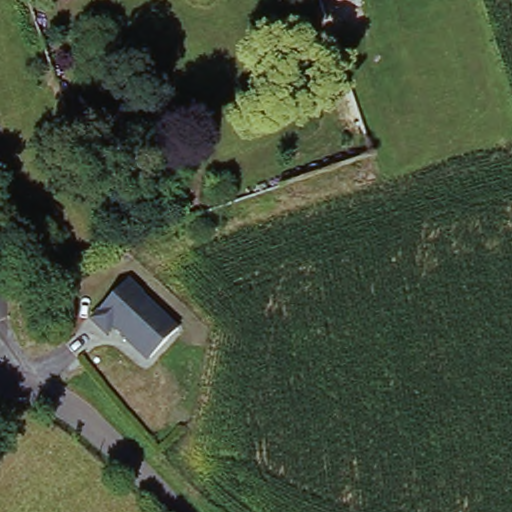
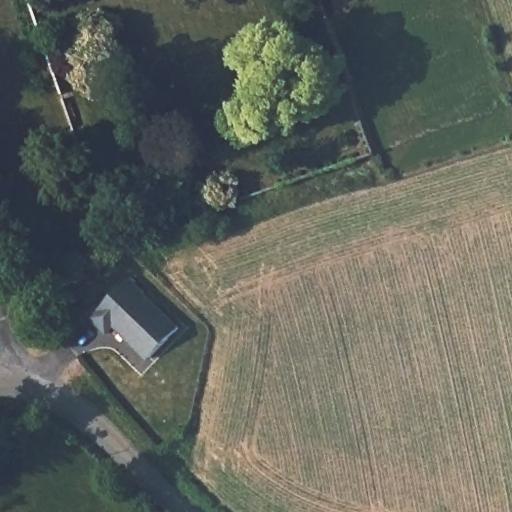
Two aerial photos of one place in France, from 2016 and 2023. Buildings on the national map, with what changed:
unchanged [(127,285),(141,299),(140,301),(175,337),(146,367),(112,333),(105,341),(90,325),(127,285)]

